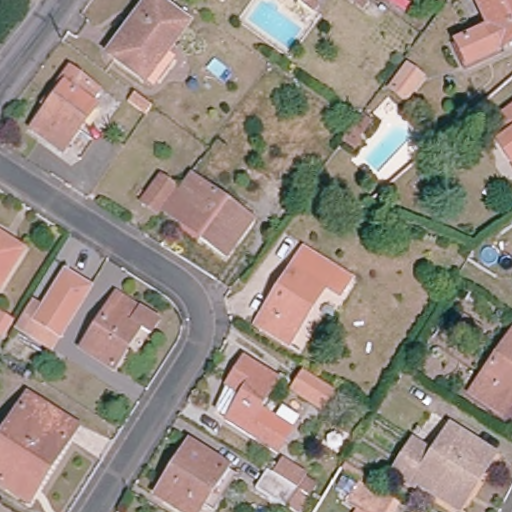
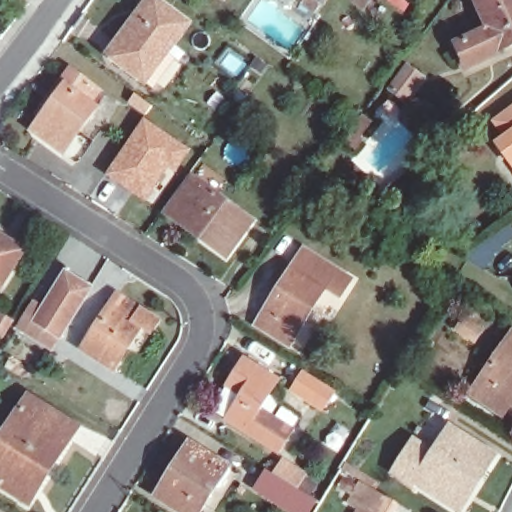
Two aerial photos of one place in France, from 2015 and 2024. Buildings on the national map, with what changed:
unchanged [(143,79),(115,58),(158,0),(159,0),(190,23),(167,53),(176,60),(155,88),(143,79)]
unchanged [(301,0),(318,0),(311,8),(301,0)]
unchanged [(476,0),(512,0),(512,41),(467,61),(458,39),(486,26),(476,0)]
new [(403,64),(421,77),(405,99),(386,86),(403,64)]
unchanged [(56,106),(52,103),(72,75),(97,91),(89,104),(98,110),(65,155),(35,136),(56,106)]
unchanged [(149,114),(131,101),(138,93),(145,98),(155,105),(149,114)]
unchanged [(502,118),(512,110),(512,131),(502,118)]
new [(144,116),(190,149),(172,173),(170,171),(145,204),(102,177),(144,116)]
unchanged [(503,143),(512,135),(512,155),(503,143)]
unchanged [(163,181),(175,190),(158,214),(146,206),(163,181)]
unchanged [(176,214),(198,181),(255,221),(229,260),(200,239),(172,220),(176,214)]
unchanged [(0,284),(0,239),(21,251),(0,284)]
unchanged [(345,303),(327,293),(291,348),(255,326),(305,249),(357,278),(345,303)]
unchanged [(57,279),(82,293),(54,342),(29,328),(57,279)]
unchanged [(120,296),(161,320),(155,331),(144,325),(117,369),(87,351),(120,296)]
unchanged [(0,338),(0,319),(9,324),(0,338)]
unchanged [(512,345),(512,405),(510,404),(503,413),(477,393),(512,345)]
unchanged [(304,419),(297,430),(298,430),(283,455),(229,423),(242,398),(230,389),(249,358),(282,379),(264,410),(280,420),(286,408),(304,419)]
unchanged [(306,376),(332,391),(323,406),(297,391),(306,376)]
unchanged [(76,427),(30,505),(0,487),(0,447),(29,399),(76,427)]
unchanged [(413,488),(393,476),(415,442),(435,454),(452,428),(495,456),(486,471),(462,510),(431,491),(419,482),(413,488)]
unchanged [(190,448),(226,470),(203,512),(183,512),(161,498),(190,448)]
unchanged [(310,490),(297,507),(265,489),(276,470),(310,490)]
unchanged [(351,503),(364,482),(397,503),(392,512),(362,512),(363,511),(351,503)]

